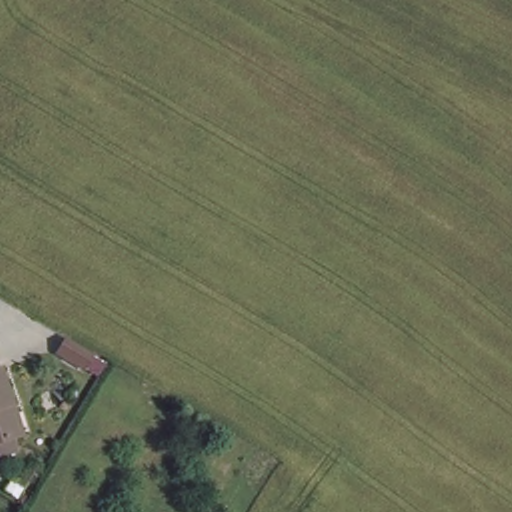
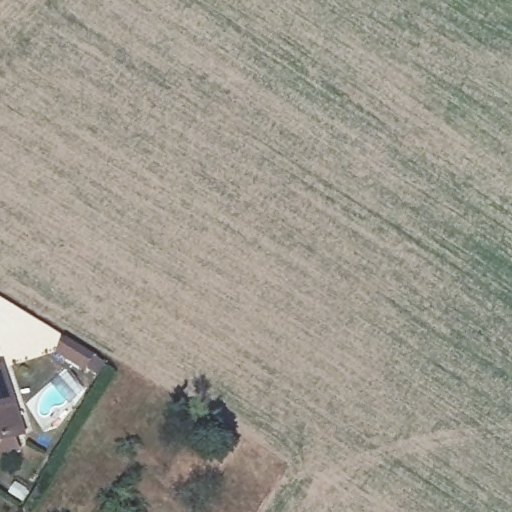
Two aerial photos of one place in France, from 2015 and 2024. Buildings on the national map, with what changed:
unchanged [(2,452),(0,446),(0,347),(5,368),(9,367),(19,403),(27,434),(21,435),(18,436),(21,447),(2,452)]

